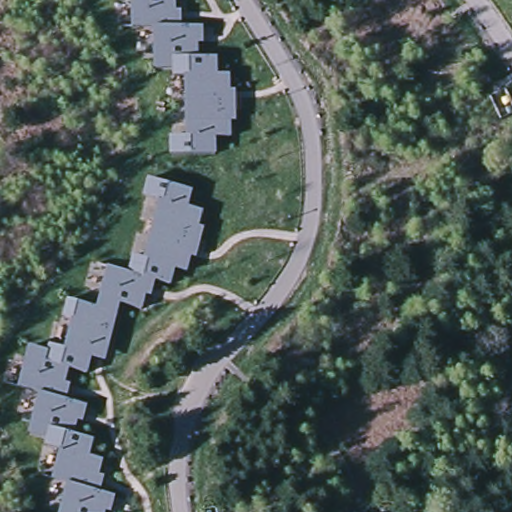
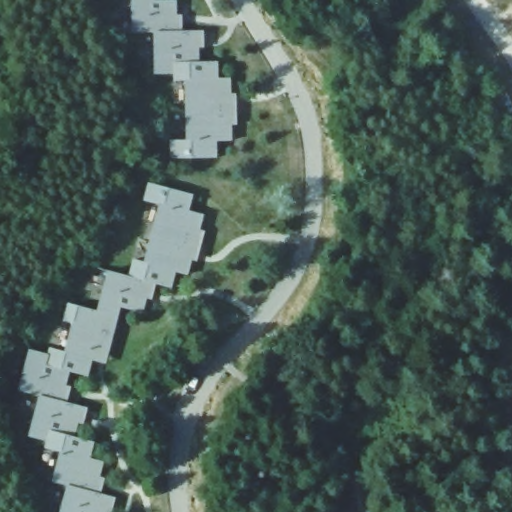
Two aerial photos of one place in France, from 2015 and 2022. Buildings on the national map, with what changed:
unchanged [(181,10),(188,10),(188,21),(183,21),(184,27),(176,27),(176,35),(176,36),(156,36),(138,37),(135,37),(135,7),(134,0),(153,0),(153,5),(176,5),(176,21),(181,21),(181,10)]
unchanged [(203,44),(203,36),(215,36),(215,44),(206,44),(206,50),(198,50),(198,66),(176,67),(176,78),(157,79),(156,36),(176,36),(176,35),(198,35),(198,44),(203,44)]
unchanged [(176,85),(176,78),(176,67),(198,66),(217,66),(218,82),(230,82),(230,100),(238,99),(238,105),(243,105),(243,117),(235,117),(235,105),(230,105),(231,144),(216,145),(216,161),(173,162),(172,145),(175,145),(192,144),(191,84),(176,85)]
unchanged [(201,246),(208,249),(205,260),(200,259),(199,265),(192,263),(187,280),(175,276),(171,292),(150,287),(150,286),(130,281),(135,264),(150,267),(165,210),(147,205),(146,205),(150,187),(193,199),(188,215),(203,219),(193,257),(198,258),(201,246)]
unchanged [(154,303),(158,304),(155,315),(148,314),(151,302),(147,301),(142,317),(121,311),(118,321),(99,316),(99,315),(110,275),(130,281),(150,286),(150,287),(148,295),(155,297),(154,303)]
unchanged [(100,362),(98,366),(92,365),(87,380),(70,376),(70,375),(47,370),(50,359),(51,352),(66,356),(75,327),(65,325),(70,308),(99,315),(99,316),(118,321),(108,356),(107,356),(105,363),(100,362)]
unchanged [(71,399),(80,401),(78,408),(66,405),(68,398),(63,397),(61,405),(61,406),(41,400),(23,396),(20,395),(31,354),(50,359),(47,370),(70,375),(70,376),(65,391),(72,393),(71,399)]
unchanged [(33,430),(41,400),(61,406),(61,405),(82,411),(80,420),(85,421),(86,414),(98,417),(96,424),(87,422),(85,427),(78,425),(74,441),(52,435),(49,446),(48,446),(30,441),(33,430)]
unchanged [(106,472),(113,474),(110,485),(106,485),(105,490),(97,488),(95,497),(70,490),(69,490),(54,486),(62,456),(47,452),(48,446),(49,446),(52,435),(74,441),(94,446),(90,462),(103,466),(99,482),(103,483),(106,472)]
unchanged [(114,504),(126,507),(125,512),(117,512),(115,511),(115,512),(63,512),(69,490),(70,490),(95,497),(110,500),(108,510),(112,511),(114,504)]

